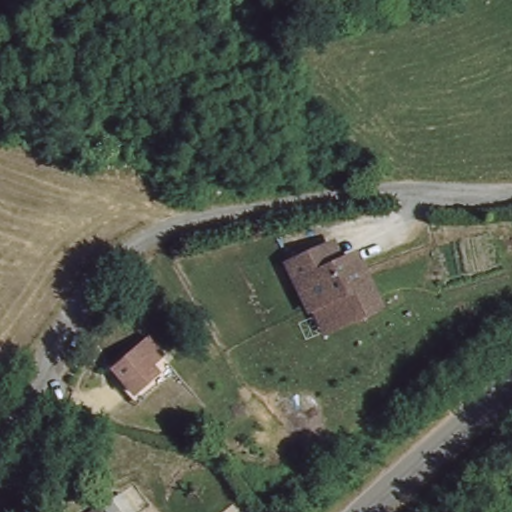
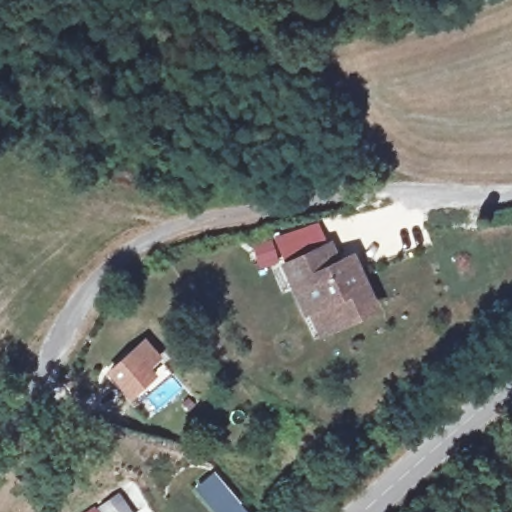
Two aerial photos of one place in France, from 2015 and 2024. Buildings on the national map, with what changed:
unchanged [(311,325),(288,298),(278,286),(306,262),(314,256),(328,273),(340,263),(355,279),(376,304),(356,321),(327,345),(311,325)]
unchanged [(101,369),(143,339),(165,374),(126,407),(101,369)]
new [(248,512),(215,512),(195,488),(215,472),(248,512)]

